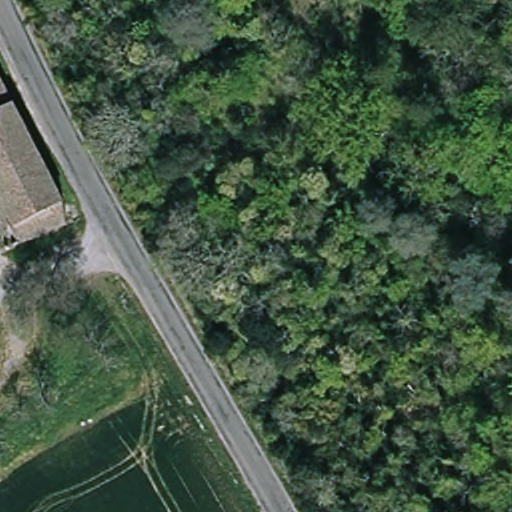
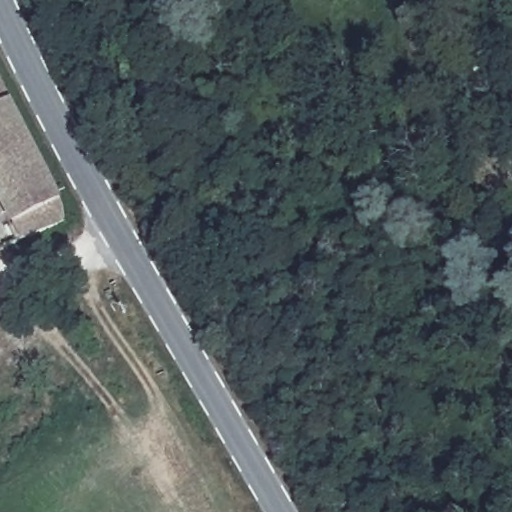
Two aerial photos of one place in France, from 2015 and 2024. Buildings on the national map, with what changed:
unchanged [(1,75),(70,214),(65,218),(69,227),(18,251),(0,214),(0,74),(1,75)]

